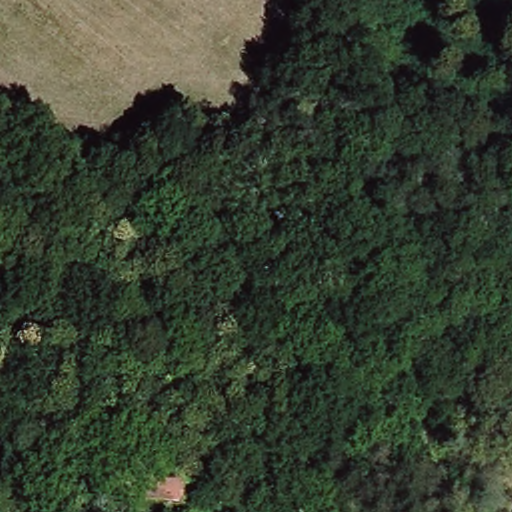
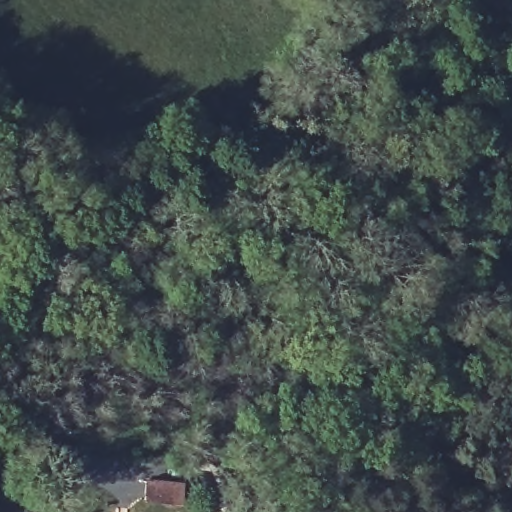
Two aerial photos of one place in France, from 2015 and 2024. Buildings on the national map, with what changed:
unchanged [(149,478),(178,476),(180,494),(151,496),(149,478)]

